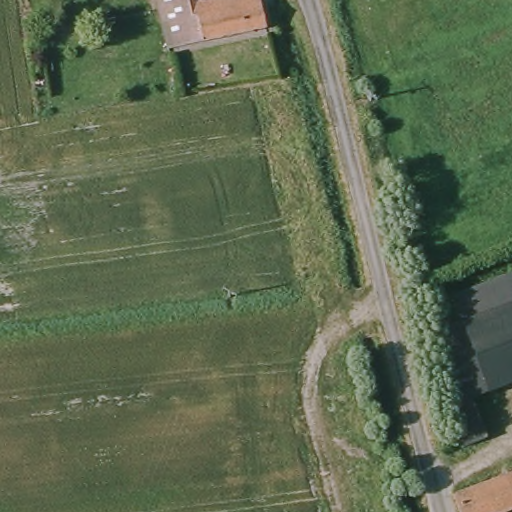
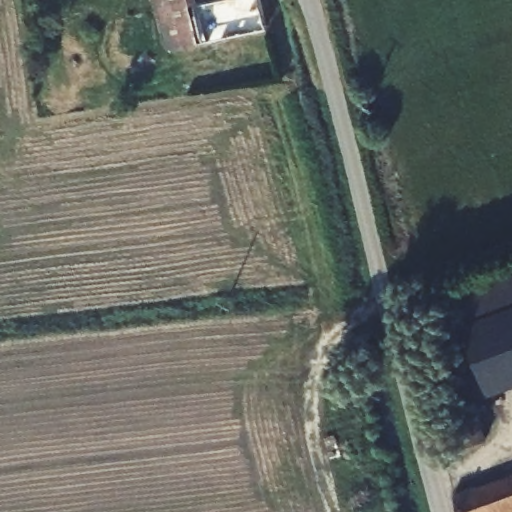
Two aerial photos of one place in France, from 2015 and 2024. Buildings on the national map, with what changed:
unchanged [(165,50),(156,0),(195,0),(196,7),(233,0),(260,0),(267,32),(165,50)]
unchanged [(452,305),(512,282),(512,308),(461,327),(452,305)]
unchanged [(442,335),(461,327),(512,308),(512,387),(469,403),(442,335)]
unchanged [(484,441),(458,450),(445,414),(457,408),(430,341),(442,335),(469,403),(484,441)]
unchanged [(512,481),(512,512),(463,512),(458,502),(512,481)]

